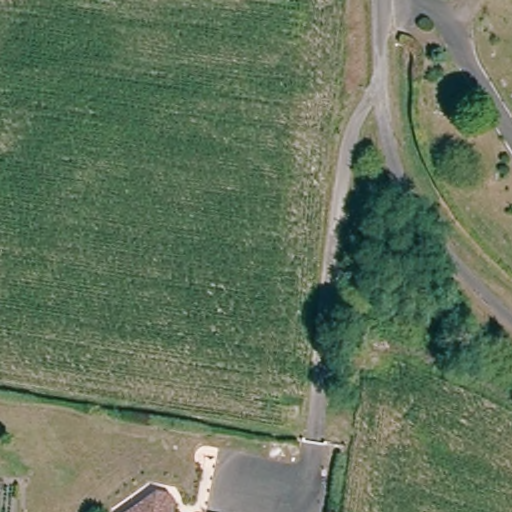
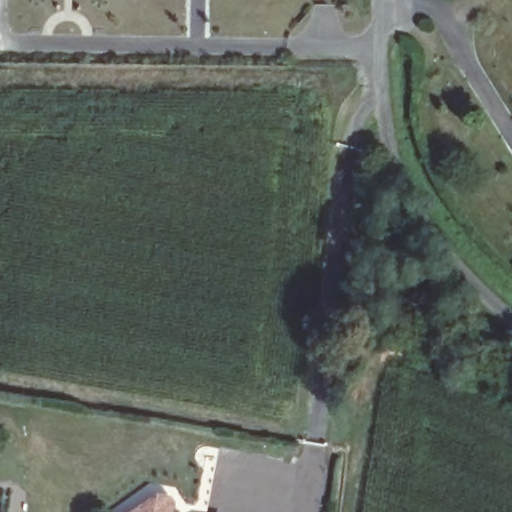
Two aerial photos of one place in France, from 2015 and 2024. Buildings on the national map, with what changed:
unchanged [(162,495),(166,500),(164,512),(126,512),(151,493),(162,495)]

